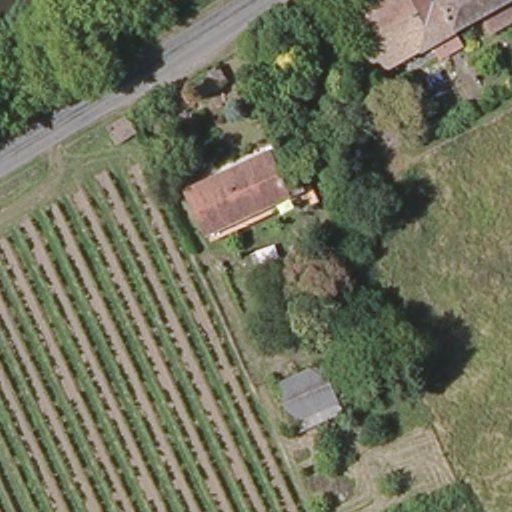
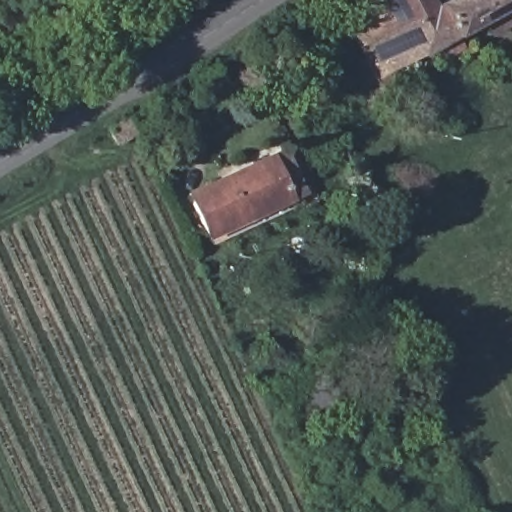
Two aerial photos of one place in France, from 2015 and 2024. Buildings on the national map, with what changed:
unchanged [(355,30),(367,22),(354,0),(436,0),(439,6),(451,0),(512,0),(512,4),(383,79),(355,30)]
unchanged [(219,69),(227,82),(202,97),(194,83),(219,69)]
unchanged [(116,143),(108,130),(130,118),(137,131),(116,143)]
unchanged [(235,170),(240,169),(246,165),(269,156),(289,197),(209,232),(190,190),(218,178),(226,175),(230,173),(235,170)]
unchanged [(284,387),(331,365),(347,401),(301,423),(284,387)]

